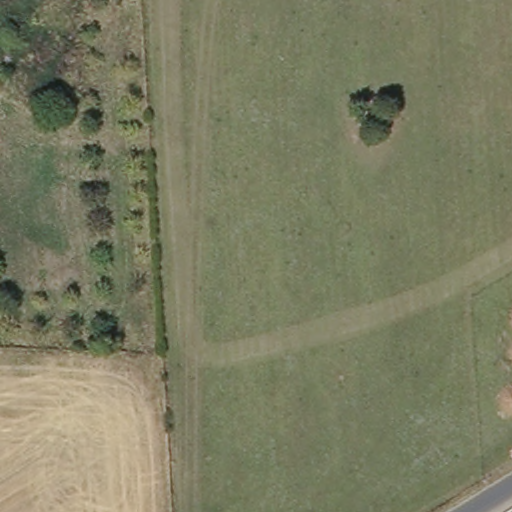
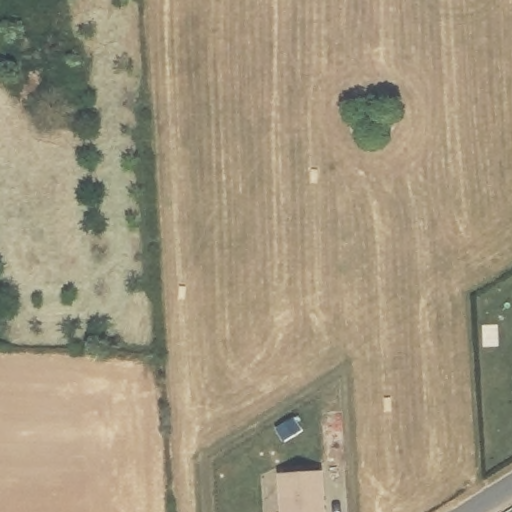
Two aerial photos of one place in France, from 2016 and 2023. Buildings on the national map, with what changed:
new [(322,468),(325,512),(279,512),(277,471),(322,468)]

